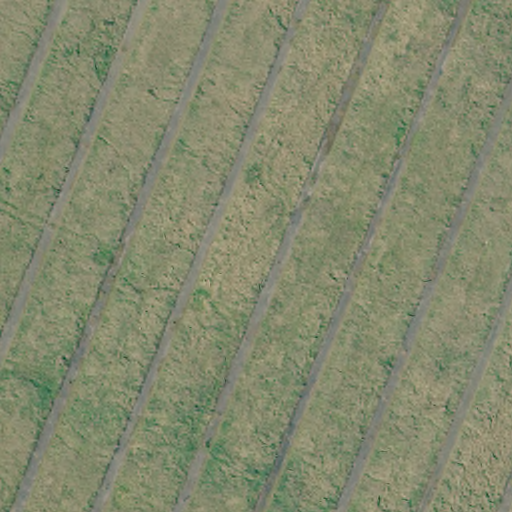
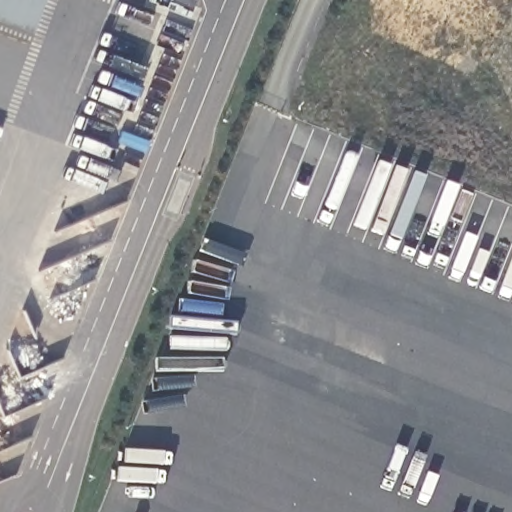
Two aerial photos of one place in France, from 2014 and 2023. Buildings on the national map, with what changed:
new [(0,20),(0,0),(45,0),(34,32),(0,20)]
new [(182,0),(195,0),(193,4),(182,0)]

